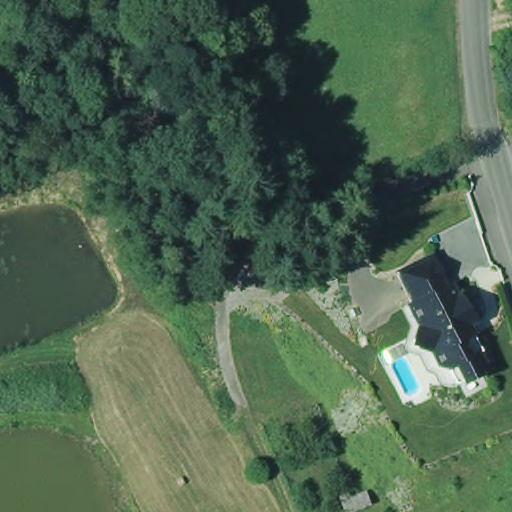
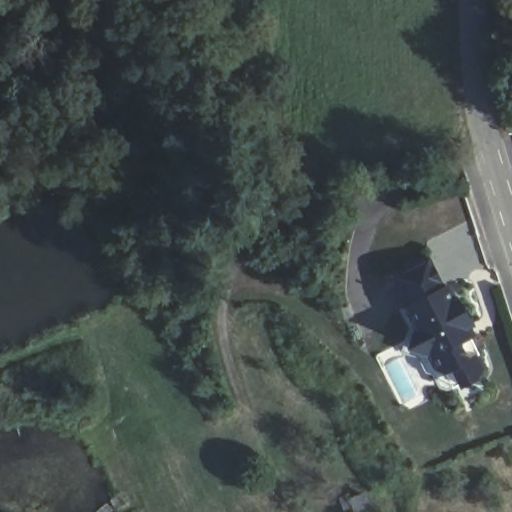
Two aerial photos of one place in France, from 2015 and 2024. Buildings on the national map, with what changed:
unchanged [(447,335),(464,321),(488,368),(452,390),(412,328),(434,316),(447,335)]

